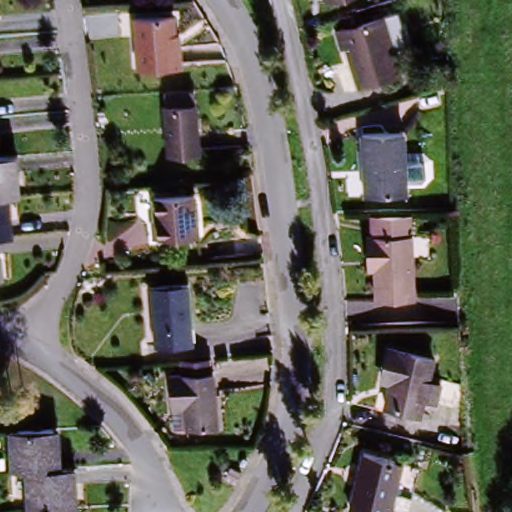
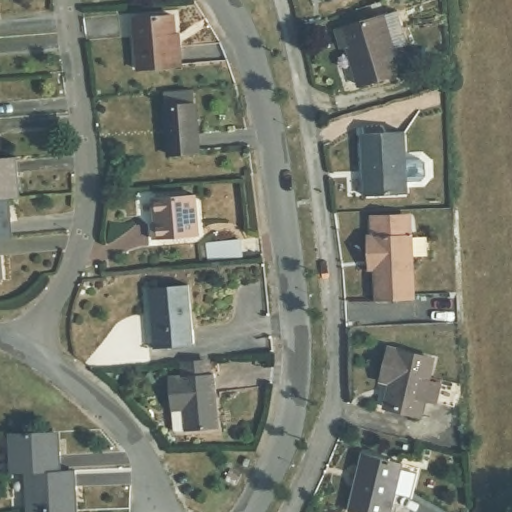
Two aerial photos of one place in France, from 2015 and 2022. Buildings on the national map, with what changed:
unchanged [(332,0),(344,0),(333,4),(332,0)]
unchanged [(141,74),(136,23),(176,20),(178,39),(182,39),(183,49),(185,70),(141,74)]
unchanged [(356,94),(344,55),(338,56),(333,39),(378,25),(394,20),(404,55),(389,60),(396,82),(356,94)]
unchanged [(171,109),(200,106),(203,139),(203,157),(174,160),(173,141),(171,109)]
unchanged [(403,197),(366,199),(364,139),(401,137),(402,163),(417,162),(422,166),(422,180),(417,184),(403,185),(403,197)]
unchanged [(13,180),(15,201),(4,202),(0,202),(0,161),(18,160),(19,179),(13,180)]
unchanged [(5,220),(12,220),(13,240),(0,241),(0,202),(4,202),(5,220)]
unchanged [(153,232),(156,231),(153,206),(196,202),(201,241),(155,246),(153,232)]
unchanged [(379,305),(378,272),(371,273),(369,240),(376,240),(374,216),(413,214),(414,238),(417,303),(379,305)]
unchanged [(195,352),(156,356),(151,296),(190,293),(195,352)]
unchanged [(425,405),(422,421),(387,413),(393,390),(385,387),(393,354),(435,364),(432,382),(453,387),(460,390),(461,395),(459,395),(456,412),(425,405)]
unchanged [(175,412),(173,381),(187,380),(186,368),(213,367),(214,379),(218,379),(221,432),(188,435),(188,432),(176,432),(175,412)]
unchanged [(53,455),(57,455),(58,475),(24,477),(19,477),(9,477),(8,437),(39,436),(52,435),(53,455)]
unchanged [(401,463),(388,512),(348,512),(363,454),(401,463)]
unchanged [(75,495),(70,495),(71,512),(26,512),(24,477),(58,475),(71,475),(74,475),(75,495)]

